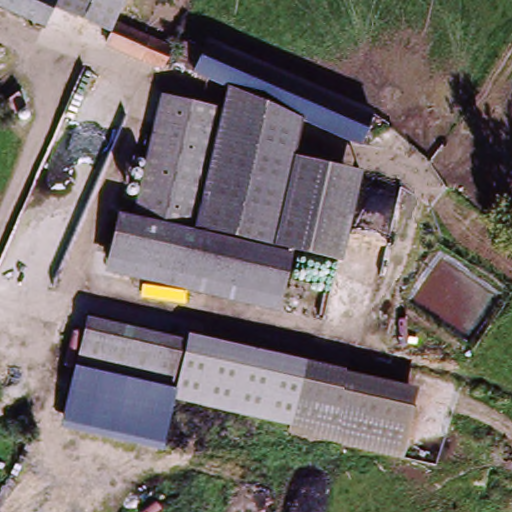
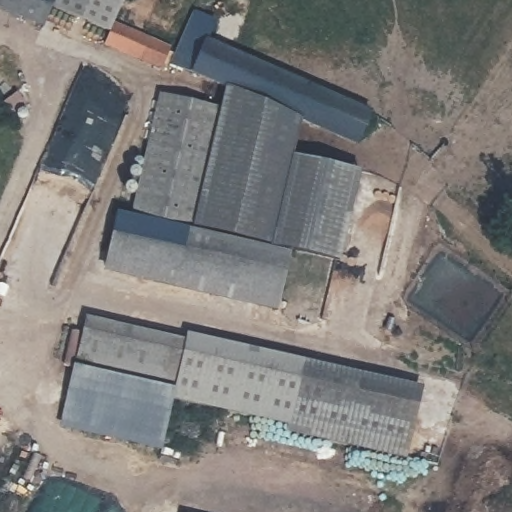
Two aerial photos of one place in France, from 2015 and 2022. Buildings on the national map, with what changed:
unchanged [(40,24),(0,4),(0,0),(52,0),(40,24)]
unchanged [(114,24),(109,34),(53,9),(57,0),(124,0),(114,24)]
unchanged [(109,34),(114,24),(169,48),(159,71),(102,48),(109,34)]
unchanged [(372,113),(357,149),(300,123),(225,88),(191,73),(174,65),(183,45),(199,53),(207,40),(372,113)]
unchanged [(300,123),(293,156),(360,172),(340,262),(292,252),(192,227),(220,109),(225,88),(300,123)]
unchanged [(220,109),(192,227),(132,214),(159,96),(220,109)]
unchanged [(192,227),(292,252),(277,313),(102,274),(117,212),(132,214),(192,227)]
unchanged [(85,319),(184,341),(185,334),(306,363),(293,428),(180,403),(169,401),(170,387),(73,366),(85,319)]
unchanged [(424,391),(408,459),(293,428),(306,363),(424,391)]
unchanged [(170,387),(169,401),(180,403),(167,452),(64,429),(73,366),(170,387)]

